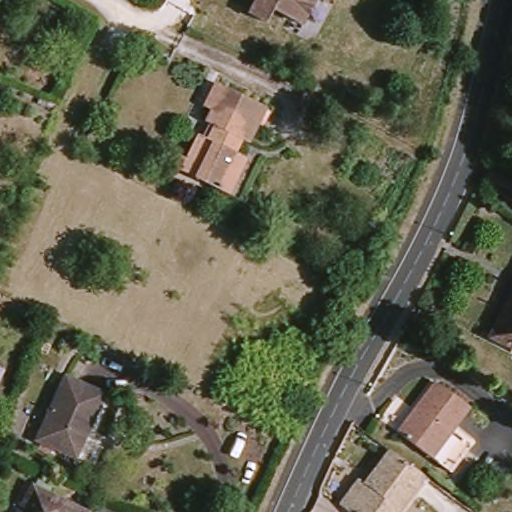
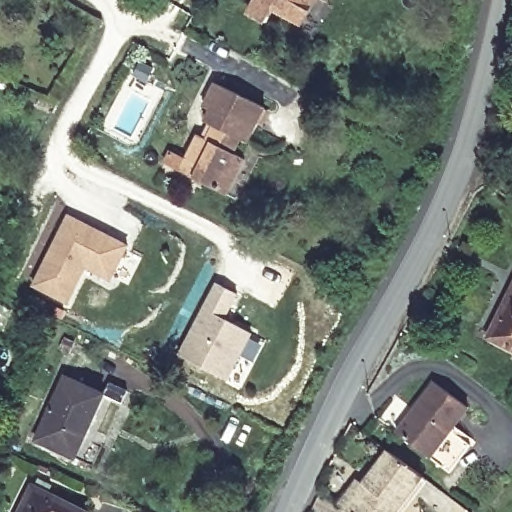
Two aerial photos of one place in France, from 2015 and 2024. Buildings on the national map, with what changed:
unchanged [(312,1),(297,29),(271,14),(264,26),(247,17),(257,0),(327,0),(322,8),(312,1)]
unchanged [(165,171),(172,155),(187,162),(197,141),(204,145),(212,129),(204,125),(210,114),(204,111),(214,89),(268,115),(252,150),(242,145),(235,160),(245,165),(228,200),(197,186),(180,177),(165,171)]
new [(83,225),(100,233),(128,246),(111,281),(86,269),(69,305),(34,288),(67,218),(83,225)]
new [(244,386),(229,379),(181,355),(217,282),(237,293),(225,318),(253,332),(268,339),(244,386)]
unchanged [(489,338),(512,289),(512,349),(489,338)]
unchanged [(74,342),(70,352),(61,349),(66,339),(74,342)]
unchanged [(102,396),(75,457),(37,440),(65,380),(102,396)]
unchanged [(434,385),(466,410),(430,459),(397,435),(434,385)]
unchanged [(388,453),(421,476),(396,512),(346,512),(388,453)]
unchanged [(73,512),(23,512),(32,493),(73,512)]

